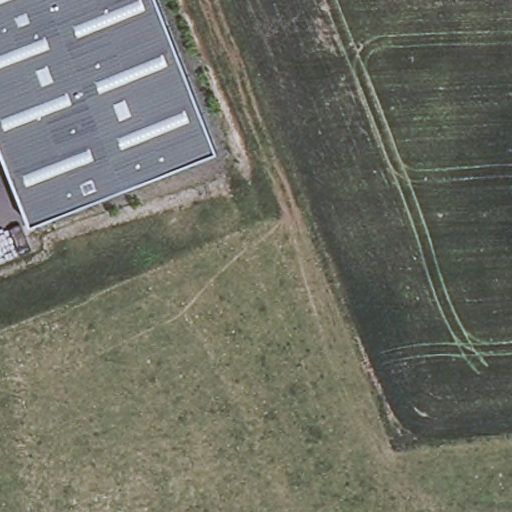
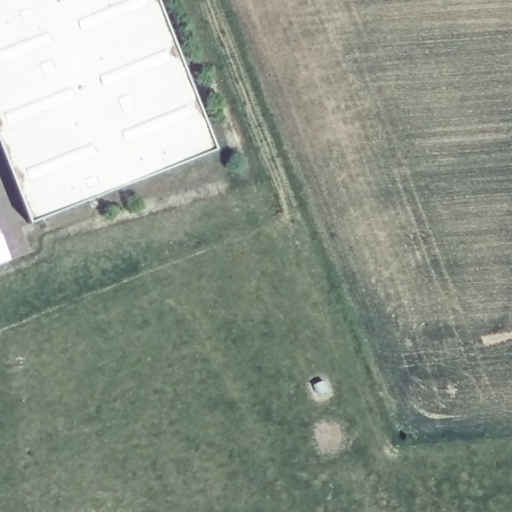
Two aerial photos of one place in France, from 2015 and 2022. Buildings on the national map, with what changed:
unchanged [(29,225),(0,153),(0,0),(155,0),(215,152),(29,225)]

